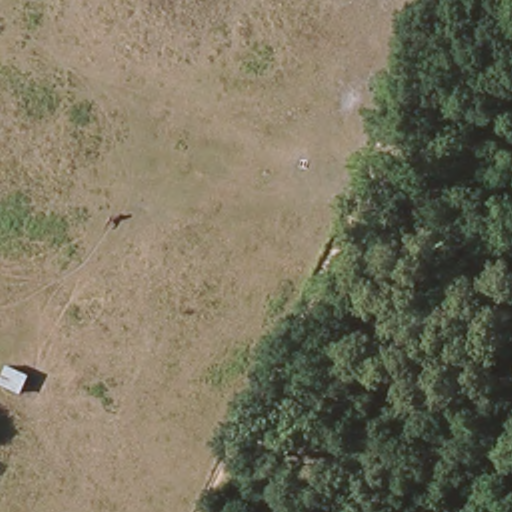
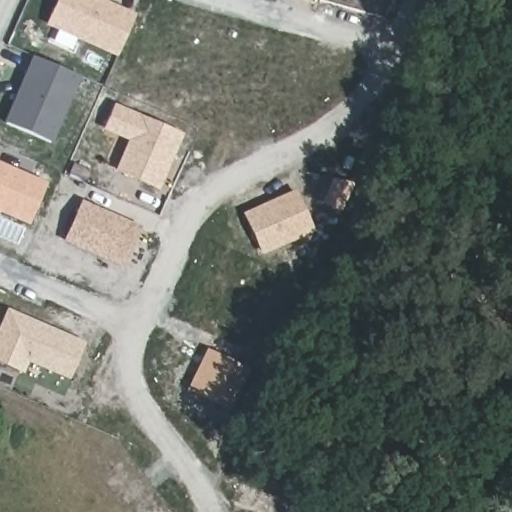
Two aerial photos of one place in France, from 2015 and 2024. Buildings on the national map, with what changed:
new [(104,0),(135,14),(116,58),(45,26),(57,0),(104,0)]
new [(32,56),(80,77),(51,144),(3,123),(32,56)]
new [(114,171),(126,141),(102,130),(114,104),(184,134),(158,191),(114,171)]
new [(0,213),(0,162),(46,183),(29,226),(0,213)]
new [(295,190),(315,233),(261,256),(242,214),(295,190)]
new [(62,243),(80,201),(142,227),(124,269),(62,243)]
new [(70,380),(29,363),(23,374),(0,364),(0,324),(6,309),(85,343),(70,380)]
new [(206,349),(248,369),(229,409),(186,390),(206,349)]

